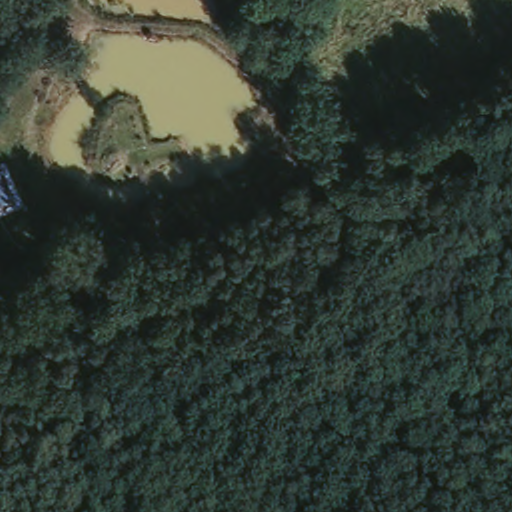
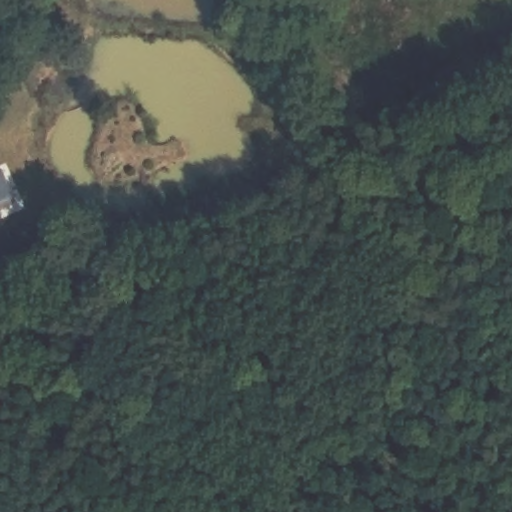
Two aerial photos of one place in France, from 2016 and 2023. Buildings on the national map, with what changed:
unchanged [(0,211),(0,175),(11,170),(22,195),(25,200),(0,211)]

